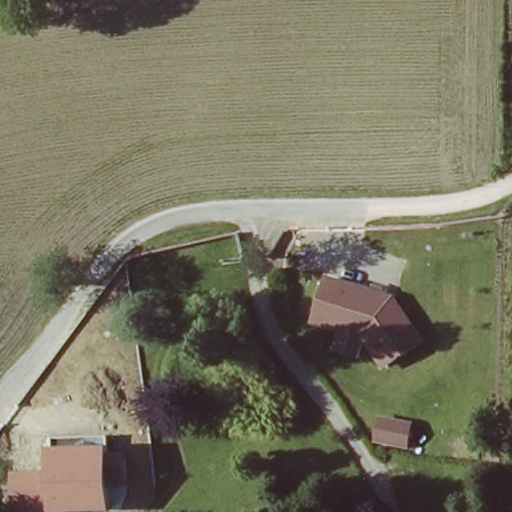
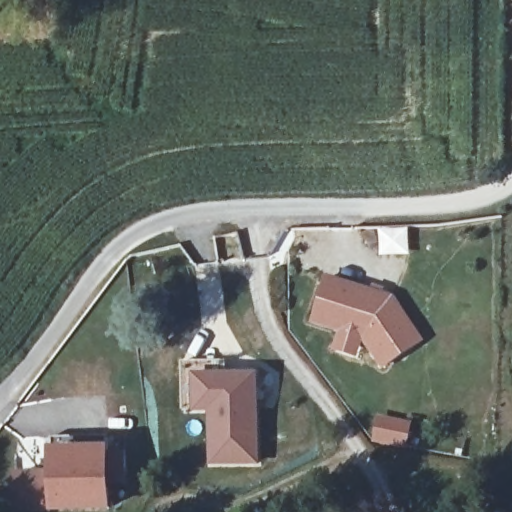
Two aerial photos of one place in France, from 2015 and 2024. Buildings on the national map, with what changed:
unchanged [(383,372),(362,340),(358,357),(334,350),(340,331),(313,322),(328,272),(397,296),(426,340),(383,372)]
new [(260,372),(261,466),(210,465),(209,413),(194,413),(182,410),(182,360),(226,360),(226,372),(260,372)]
unchanged [(412,421),(408,448),(375,442),(381,415),(412,421)]
unchanged [(49,512),(49,505),(16,506),(13,472),(48,471),(48,447),(110,447),(110,512),(49,512)]

